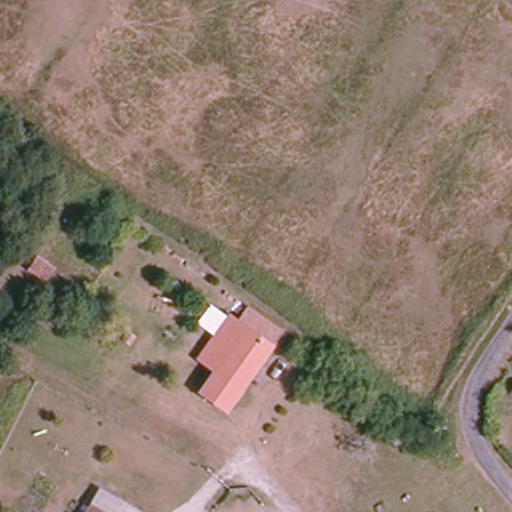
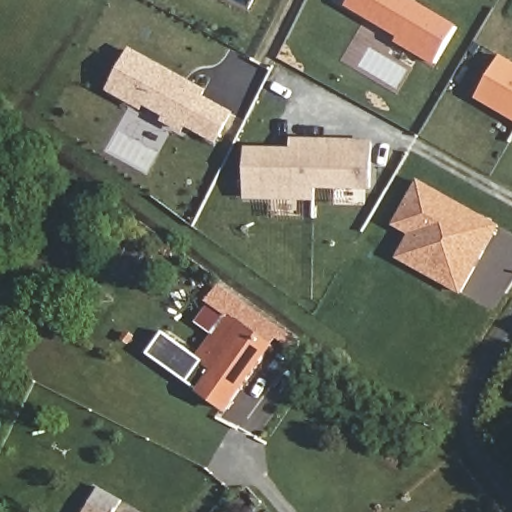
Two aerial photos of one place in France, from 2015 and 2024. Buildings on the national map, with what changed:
new [(436,64),(345,9),(350,0),(416,0),(459,26),(436,64)]
new [(132,53),(204,93),(200,99),(230,116),(215,142),(186,125),(183,130),(166,120),(168,116),(144,104),(142,108),(111,90),(132,53)]
new [(512,66),(512,120),(477,101),(500,60),(512,66)]
new [(301,151),(301,141),(316,141),(316,186),(316,198),(249,199),(249,151),(296,151),(301,151)]
new [(316,141),(371,141),(372,185),(316,186),(316,141)]
new [(409,235),(392,226),(418,179),(501,225),(462,296),(395,259),(409,235)]
unchanged [(197,395),(213,371),(198,360),(231,316),(233,313),(244,321),(251,308),(285,333),(281,340),(277,345),(226,416),(197,395)]
unchanged [(97,486),(120,498),(114,512),(83,512),(97,486)]

